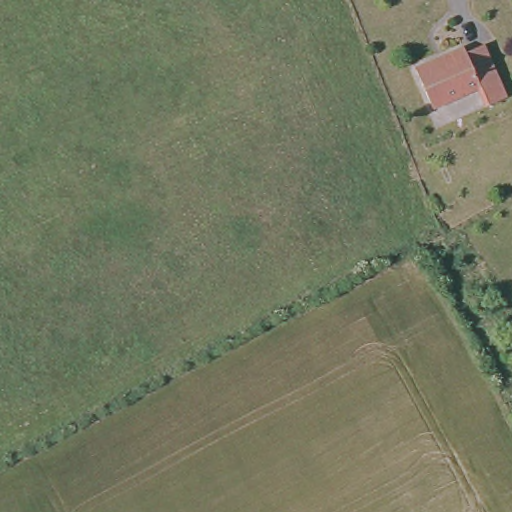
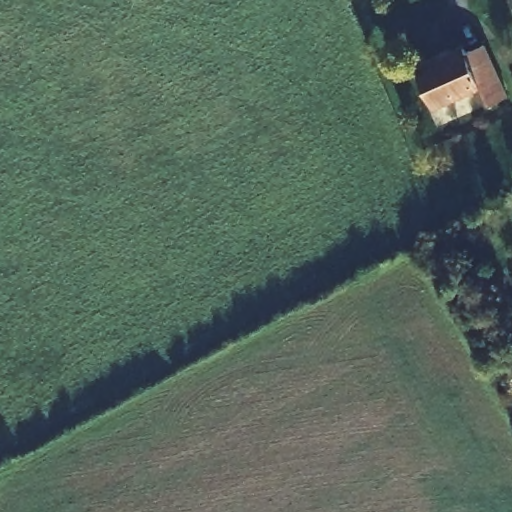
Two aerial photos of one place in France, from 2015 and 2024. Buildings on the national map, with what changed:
unchanged [(460,46),(463,54),(483,45),(505,100),(485,109),(477,91),(431,109),(412,67),(460,46)]

